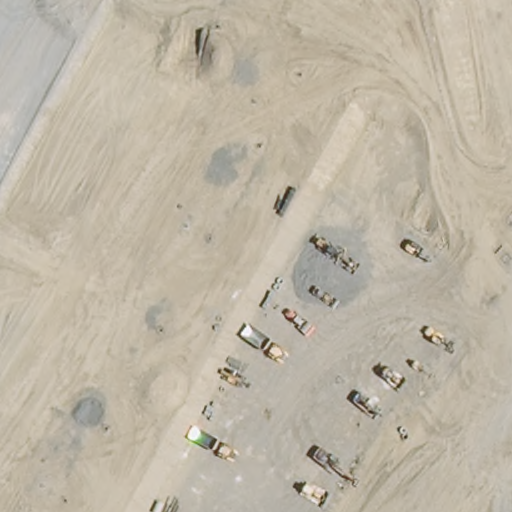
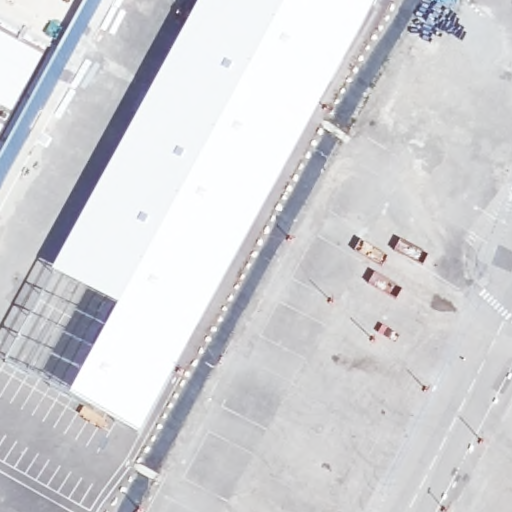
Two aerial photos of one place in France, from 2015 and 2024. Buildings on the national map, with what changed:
new [(162,72),(201,0),(378,0),(255,228),(140,435),(68,396),(117,310),(115,308),(90,295),(60,279),(51,273),(162,72)]
new [(30,312),(33,314),(36,310),(39,312),(60,279),(90,295),(71,333),(48,372),(65,382),(62,389),(4,356),(30,312)]

